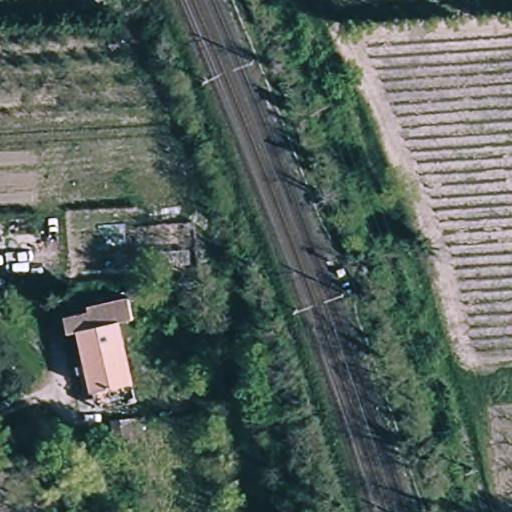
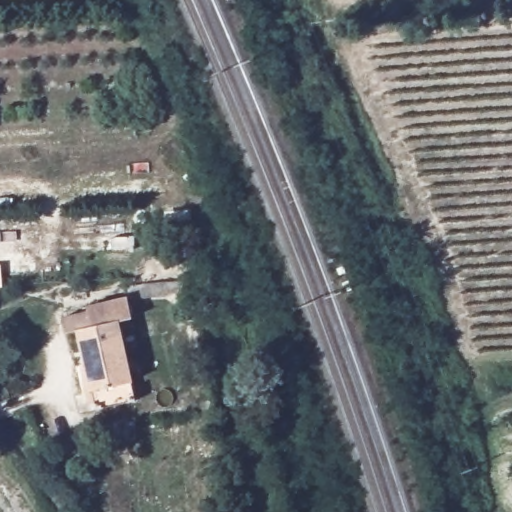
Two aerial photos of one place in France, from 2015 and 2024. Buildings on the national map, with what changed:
unchanged [(128,291),(127,279),(194,274),(196,287),(128,291)]
unchanged [(99,409),(93,384),(86,357),(79,324),(67,327),(63,311),(88,305),(88,300),(128,291),(133,312),(119,315),(132,376),(137,400),(99,409)]
unchanged [(135,417),(136,436),(113,437),(111,419),(135,417)]

